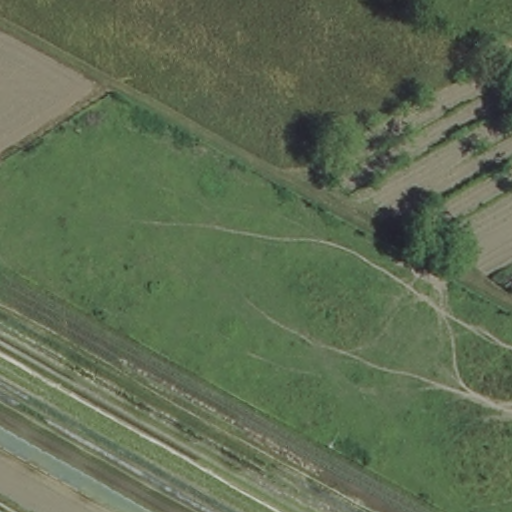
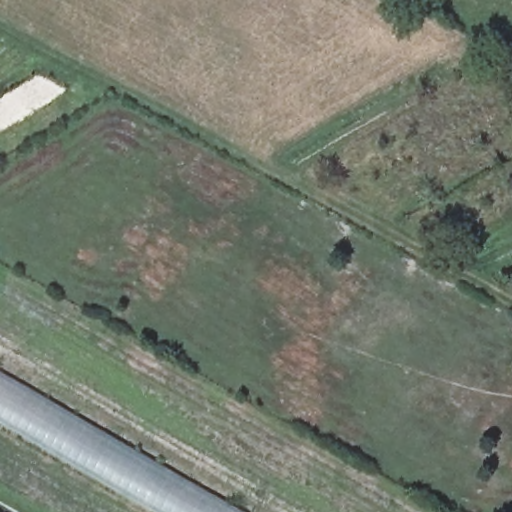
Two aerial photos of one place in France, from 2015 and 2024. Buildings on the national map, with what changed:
new [(0,424),(0,372),(240,512),(152,512),(0,424)]

